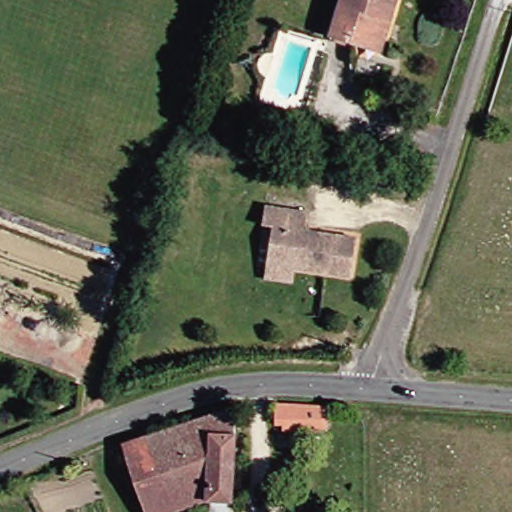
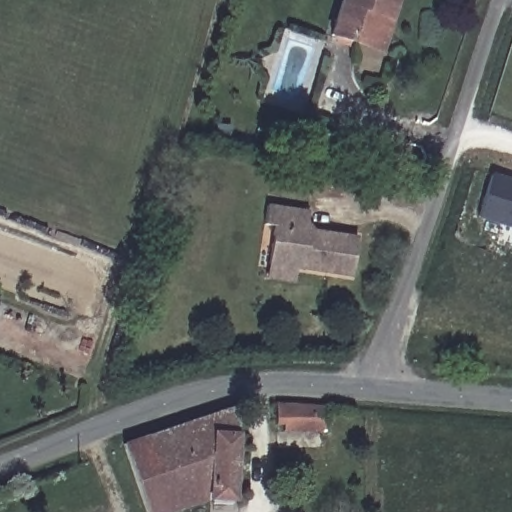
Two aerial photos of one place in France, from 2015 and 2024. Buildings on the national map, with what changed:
unchanged [(359,44),(334,35),(347,0),(403,0),(397,16),(385,51),(359,44)]
new [(478,215),(492,171),(512,177),(512,226),(478,215)]
unchanged [(280,225),(271,224),(272,206),(314,211),(313,221),(320,229),(363,235),(358,273),(302,267),(301,277),(274,273),(275,263),(280,225)]
unchanged [(0,316),(0,303),(4,305),(0,316)]
unchanged [(211,499),(168,512),(156,512),(124,442),(242,401),(241,501),(211,499)]
unchanged [(287,433),(288,427),(278,426),(279,405),(332,405),(331,430),(287,433)]

